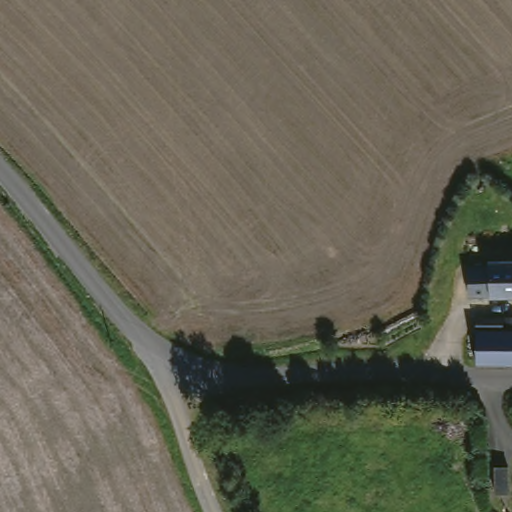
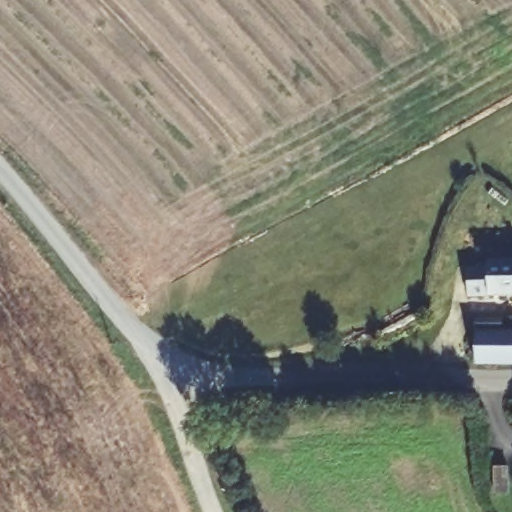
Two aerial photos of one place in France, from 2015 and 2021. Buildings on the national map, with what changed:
unchanged [(467,296),(467,268),(487,266),(487,261),(512,260),(512,296),(467,296)]
unchanged [(476,363),(476,332),(512,331),(512,363),(476,363)]
unchanged [(507,468),(506,495),(495,495),(494,468),(507,468)]

